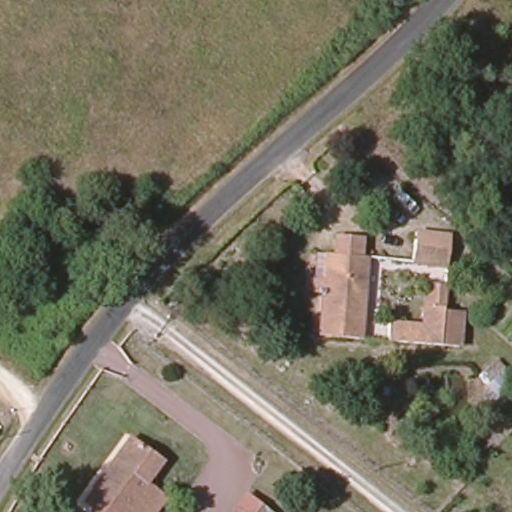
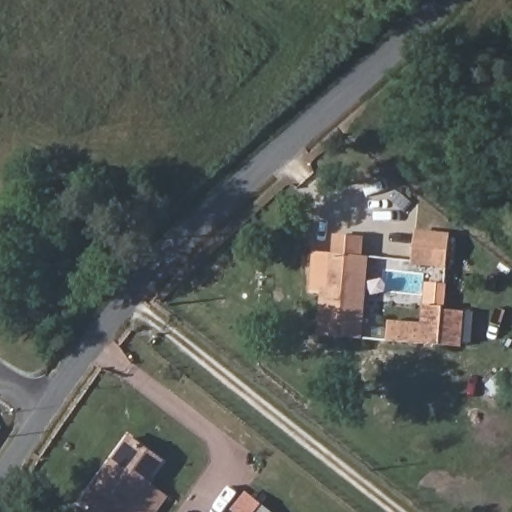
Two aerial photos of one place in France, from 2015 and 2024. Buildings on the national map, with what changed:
unchanged [(412,261),(413,239),(413,229),(448,230),(448,242),(447,263),(412,261)]
unchanged [(333,234),(357,235),(356,254),(361,254),(357,340),(316,339),(317,337),(319,286),(312,285),(313,251),(325,251),(332,252),(333,234)]
unchanged [(390,320),(426,322),(426,303),(445,303),(445,307),(462,308),(462,343),(390,338),(390,320)]
unchanged [(153,512),(133,512),(113,497),(102,512),(86,499),(97,484),(94,482),(129,434),(160,457),(145,477),(157,486),(167,494),(153,512)]
unchanged [(238,511),(253,492),(279,512),(240,512),(238,511)]

